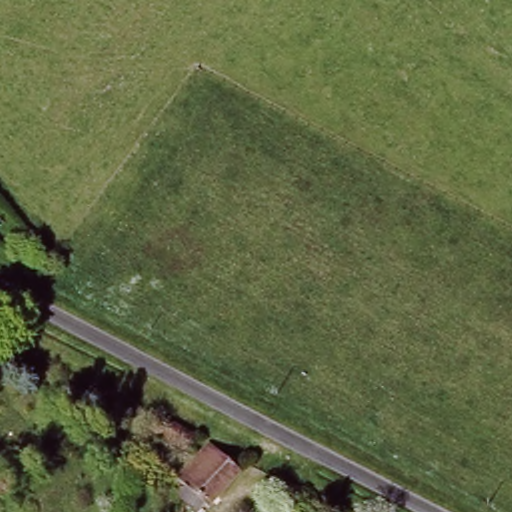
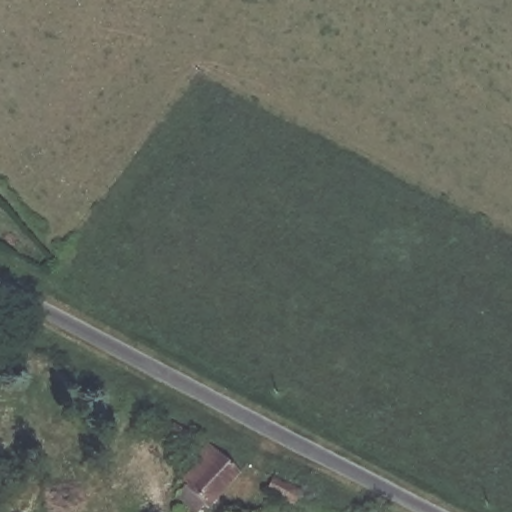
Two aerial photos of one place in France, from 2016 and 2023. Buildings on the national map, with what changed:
unchanged [(193,435),(184,452),(161,439),(163,436),(148,428),(156,415),(193,435)]
unchanged [(217,452),(242,472),(216,507),(209,502),(202,512),(181,496),(189,486),(181,480),(206,446),(217,452)]
unchanged [(299,497),(291,512),(259,494),(266,480),(299,497)]

